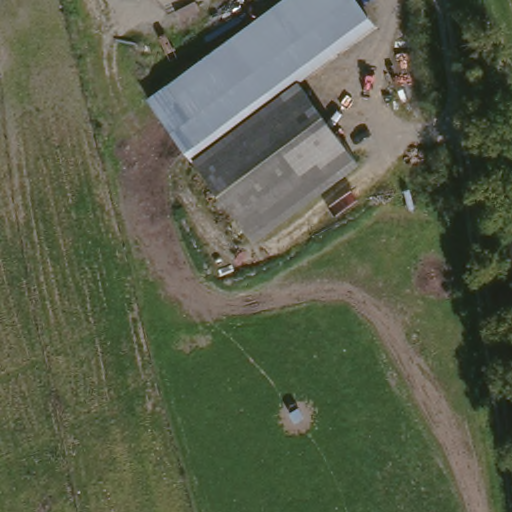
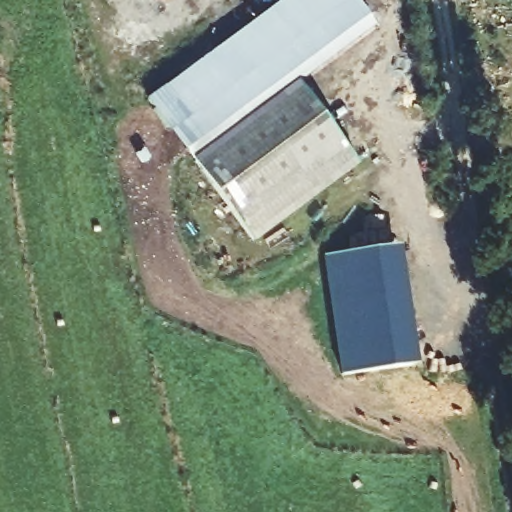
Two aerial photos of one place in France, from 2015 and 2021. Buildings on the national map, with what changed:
unchanged [(355,0),(373,24),(298,81),(192,162),(154,111),(299,0),(355,0)]
unchanged [(298,81),(357,165),(251,242),(192,162),(298,81)]
new [(396,251),(415,372),(346,382),(327,262),(396,251)]

